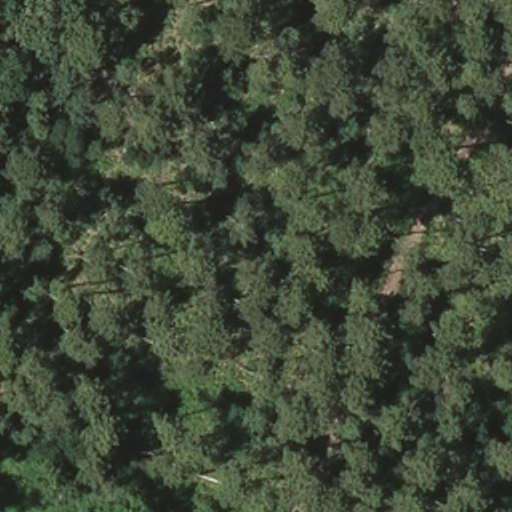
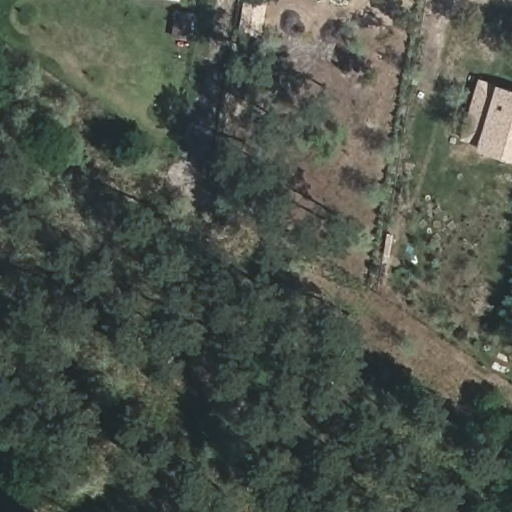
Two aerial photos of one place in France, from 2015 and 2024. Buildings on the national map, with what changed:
new [(467,143),(475,118),(468,117),(480,79),(512,89),(512,157),(467,143)]

